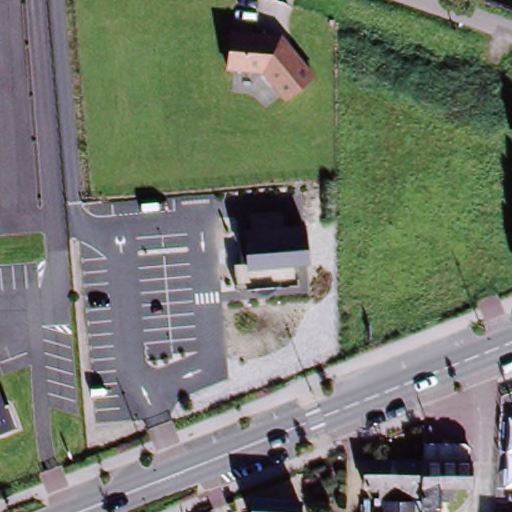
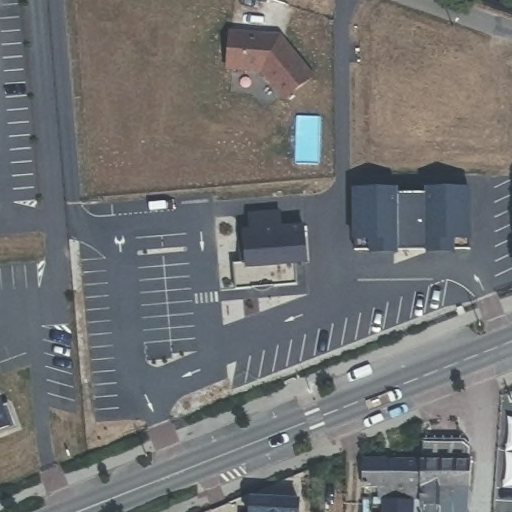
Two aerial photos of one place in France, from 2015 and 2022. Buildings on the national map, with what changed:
unchanged [(280,36),(313,77),(282,102),(259,74),(226,73),(229,32),(280,36)]
new [(391,192),(398,192),(398,197),(428,197),(428,192),(435,192),(435,188),(471,187),(472,248),(355,249),(355,188),(391,188),(391,192)]
unchanged [(246,263),(244,229),(249,228),(249,213),(281,212),(282,227),(304,225),(306,263),(295,264),(297,284),(234,290),(233,264),(246,263)]
unchanged [(10,427),(0,431),(0,401),(10,427)]
unchanged [(374,506),(375,498),(380,498),(381,486),(363,486),(364,460),(420,462),(421,440),(465,444),(473,451),(472,461),(472,464),(471,483),(471,488),(452,488),(452,500),(440,500),(440,512),(382,512),(382,506),(374,506)]
unchanged [(297,499),(297,512),(250,512),(251,498),(297,499)]

